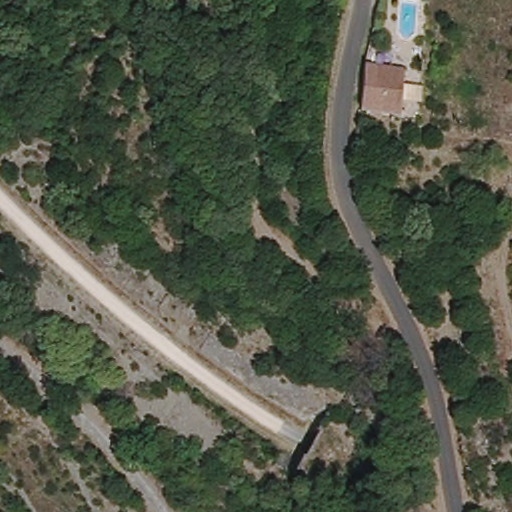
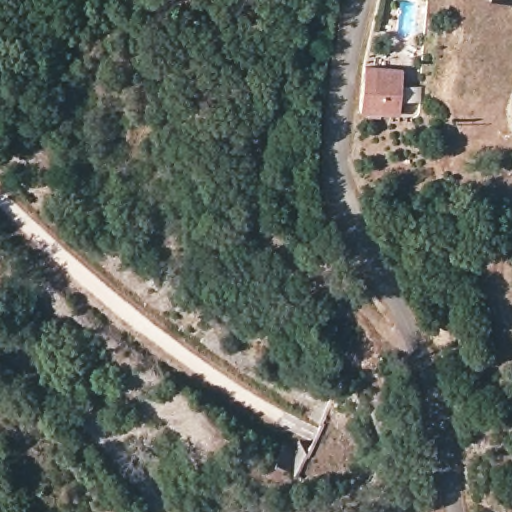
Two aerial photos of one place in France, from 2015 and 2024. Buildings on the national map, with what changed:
unchanged [(401,72),(397,105),(395,119),(357,112),(357,109),(365,65),(401,72)]

